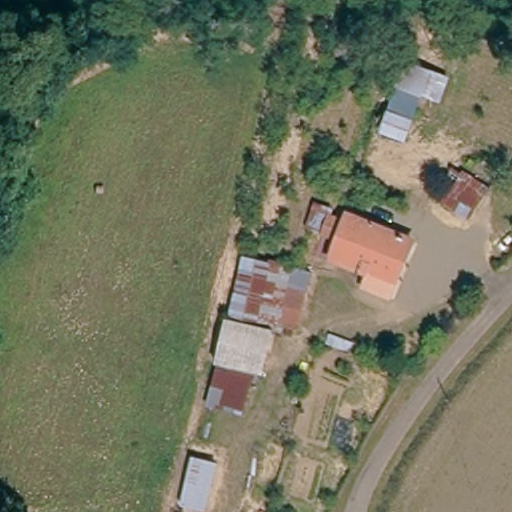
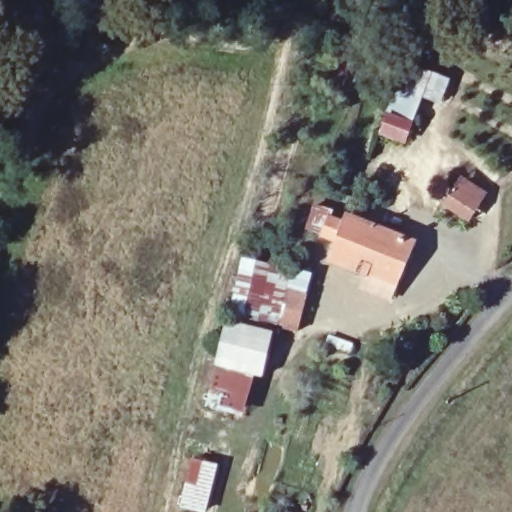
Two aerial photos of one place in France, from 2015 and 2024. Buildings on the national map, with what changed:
unchanged [(443,81),(435,102),(418,96),(400,141),(377,131),(405,65),(443,81)]
unchanged [(483,188),(466,214),(442,200),(458,173),(483,188)]
unchanged [(387,306),(358,294),(366,274),(335,261),(342,245),(328,239),(326,238),(332,222),(333,222),(348,229),(350,223),(410,248),(387,306)]
unchanged [(265,262),(311,274),(296,333),(277,329),(276,335),(270,333),(261,379),(253,378),(241,416),(215,410),(207,434),(200,433),(204,410),(212,368),(223,322),(239,257),(265,262)]
unchanged [(217,464),(206,512),(189,512),(177,510),(189,458),(217,464)]

